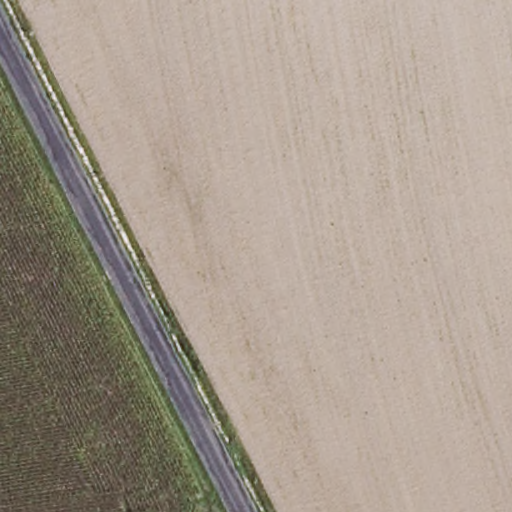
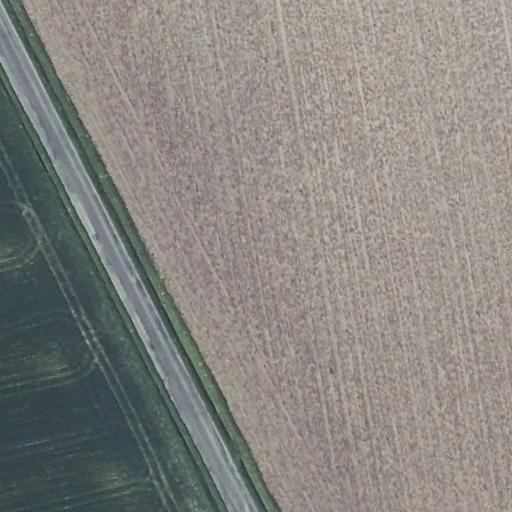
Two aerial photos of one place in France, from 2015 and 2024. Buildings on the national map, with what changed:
[]

